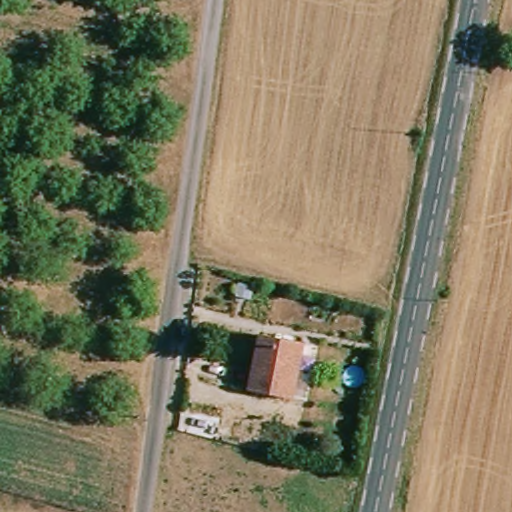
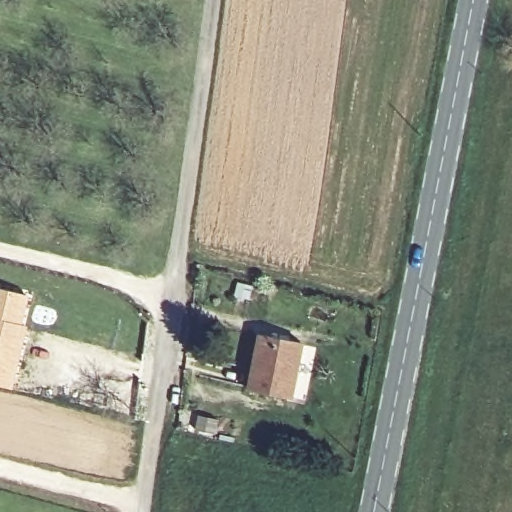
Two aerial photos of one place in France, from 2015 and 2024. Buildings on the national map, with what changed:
new [(28,328),(13,389),(0,386),(0,289),(30,296),(23,326),(28,328)]
unchanged [(263,337),(307,347),(294,404),(252,396),(263,337)]
unchanged [(212,441),(184,434),(187,416),(217,423),(212,441)]

